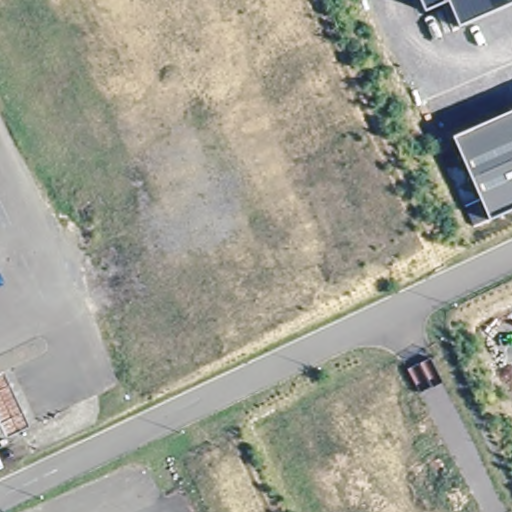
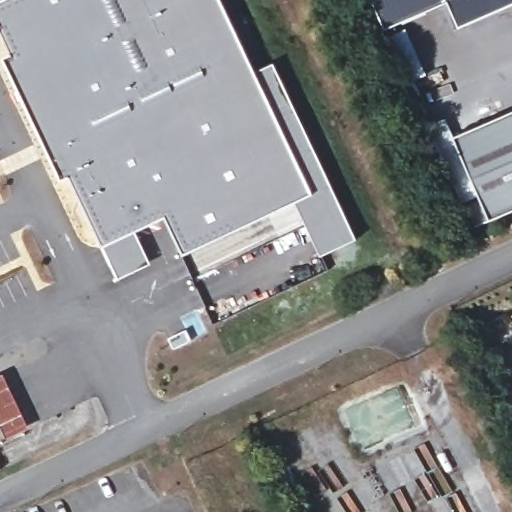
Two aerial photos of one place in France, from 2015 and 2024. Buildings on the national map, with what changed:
new [(256,79),(314,201),(298,209),(184,263),(166,225),(137,239),(104,255),(70,185),(63,189),(56,175),(64,171),(0,38),(0,9),(18,0),(218,0),(256,79)]
new [(384,29),(371,0),(418,0),(424,13),(384,29)]
unchanged [(459,29),(447,2),(424,13),(418,0),(512,0),(512,5),(459,29)]
new [(275,70),(358,245),(324,262),(298,209),(314,201),(256,79),(275,70)]
unchanged [(488,219),(453,137),(512,110),(512,209),(488,219)]
new [(137,239),(152,271),(119,287),(104,255),(137,239)]
unchanged [(0,431),(0,369),(4,367),(31,423),(3,436),(0,431)]

